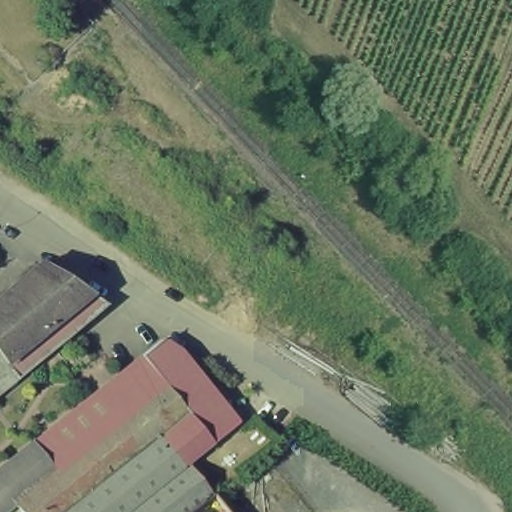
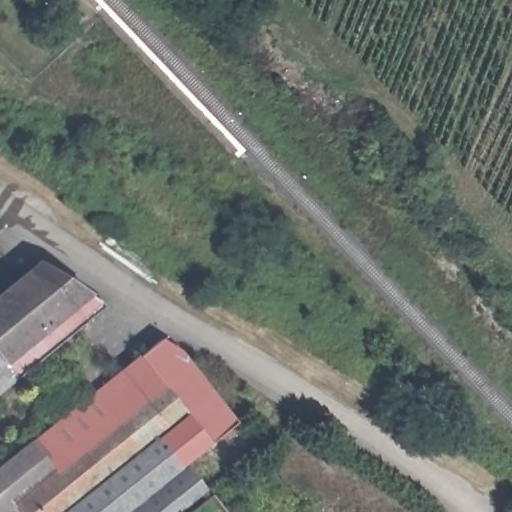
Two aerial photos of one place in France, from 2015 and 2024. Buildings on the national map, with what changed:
unchanged [(0,393),(0,296),(39,263),(106,304),(0,393)]
unchanged [(237,418),(186,459),(228,512),(25,512),(13,497),(0,508),(0,464),(161,334),(178,345),(237,418)]

